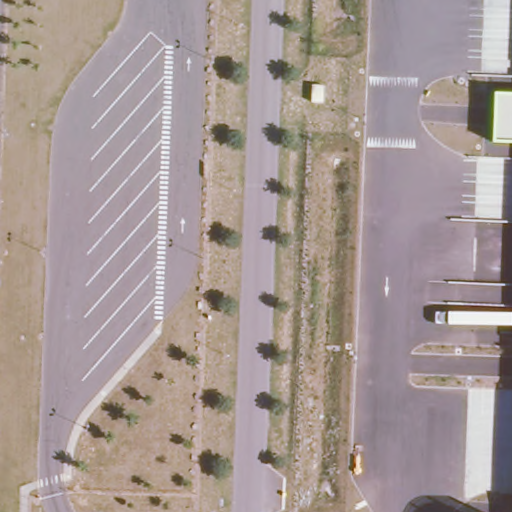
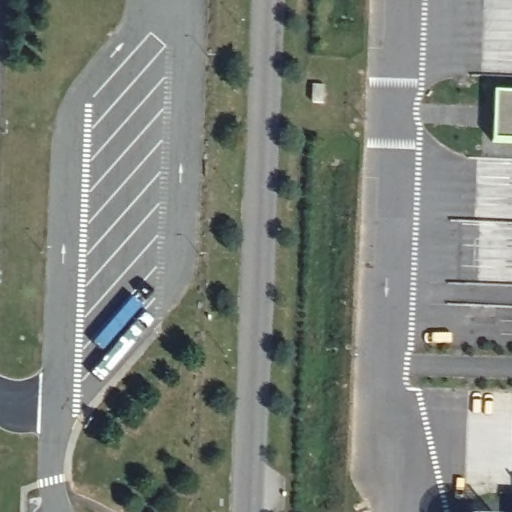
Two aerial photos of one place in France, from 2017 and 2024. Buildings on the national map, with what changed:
unchanged [(325,87),(324,104),(313,104),(314,86),(325,87)]
unchanged [(512,143),(493,142),(495,92),(512,93),(512,143)]

